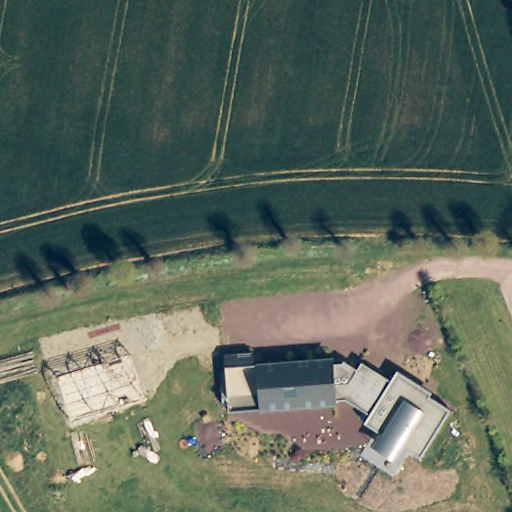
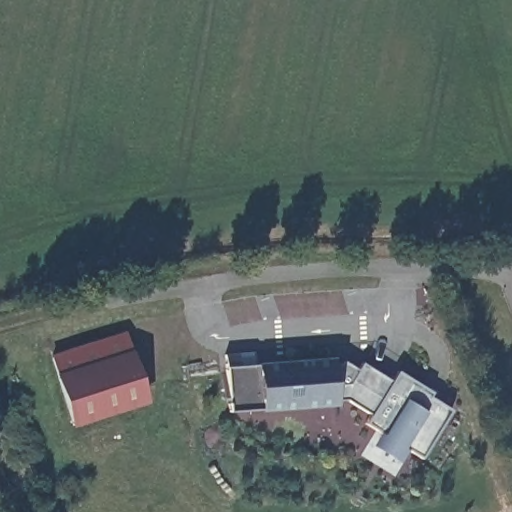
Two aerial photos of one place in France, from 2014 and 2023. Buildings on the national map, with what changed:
new [(124,332),(148,402),(70,426),(49,356),(124,332)]
unchanged [(334,401),(228,409),(225,364),(331,356),(334,401)]
unchanged [(332,364),(341,363),(344,360),(357,369),(362,362),(391,379),(397,369),(432,392),(429,397),(450,409),(421,457),(406,449),(399,462),(370,445),(378,431),(364,423),(369,414),(347,399),(334,401),(332,364)]

